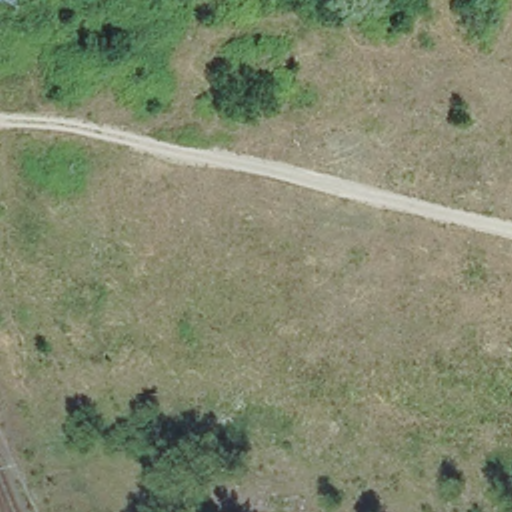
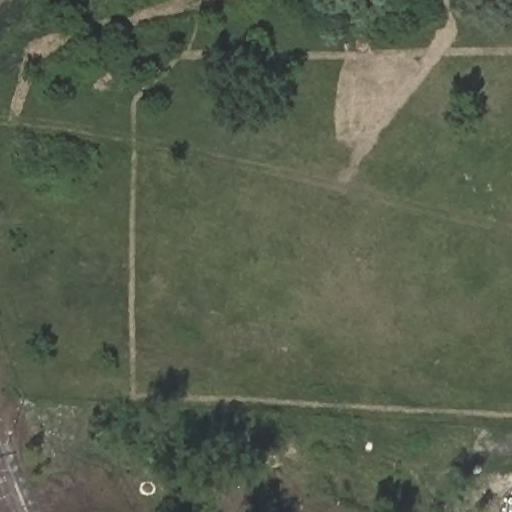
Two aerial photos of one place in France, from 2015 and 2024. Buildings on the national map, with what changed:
[]

